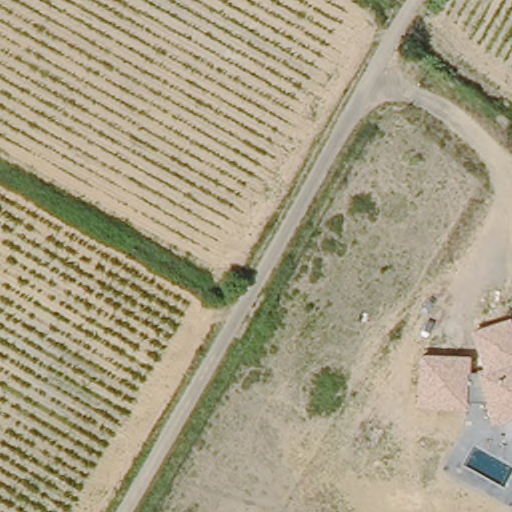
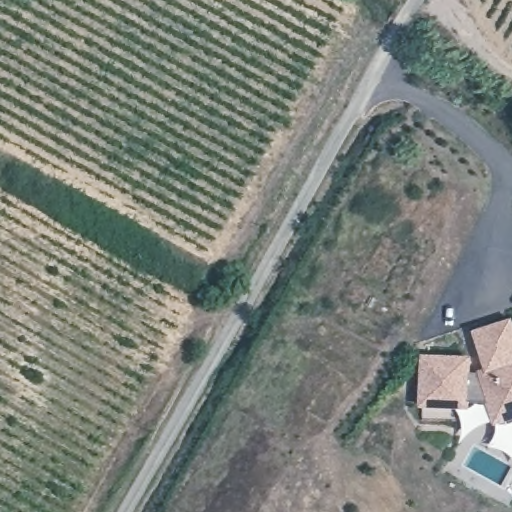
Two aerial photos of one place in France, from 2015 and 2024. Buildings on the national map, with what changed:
unchanged [(420,354),(471,357),(470,370),(483,367),(473,328),(511,317),(512,320),(512,417),(493,422),(487,400),(467,400),(466,411),(418,407),(420,354)]

